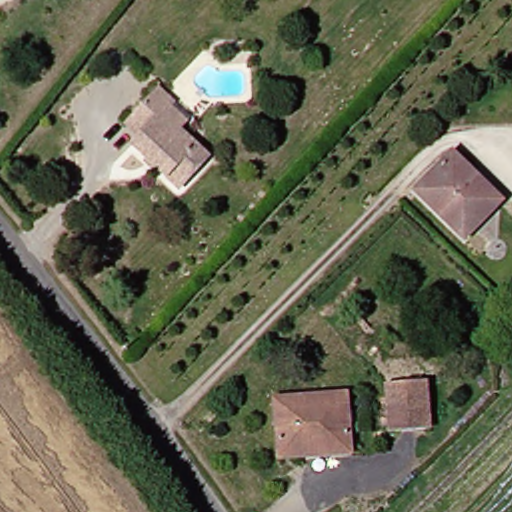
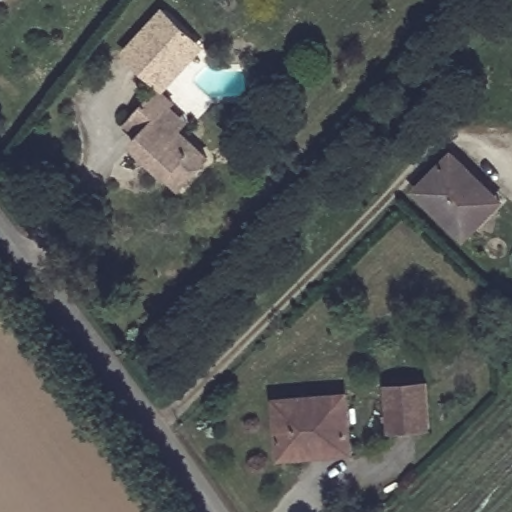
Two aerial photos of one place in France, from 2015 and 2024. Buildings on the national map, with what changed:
new [(165,92),(162,89),(122,51),(164,6),(207,46),(165,92)]
unchanged [(162,89),(169,83),(180,95),(173,101),(193,125),(184,132),(206,159),(172,186),(131,137),(141,129),(129,114),(162,89)]
unchanged [(466,239),(418,188),(457,149),(506,201),(466,239)]
unchanged [(429,429),(392,429),(391,384),(429,384),(429,429)]
unchanged [(351,397),(354,447),(283,452),(279,402),(351,397)]

